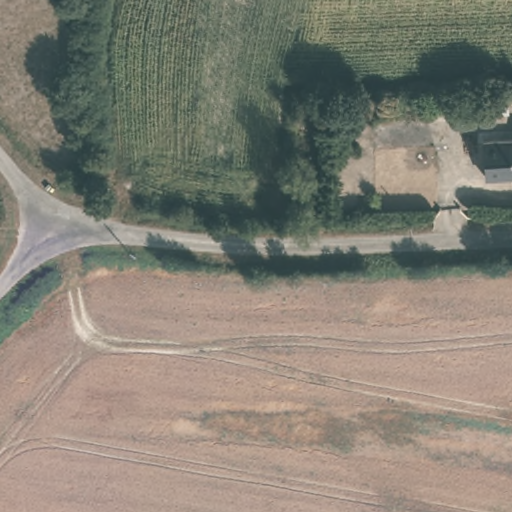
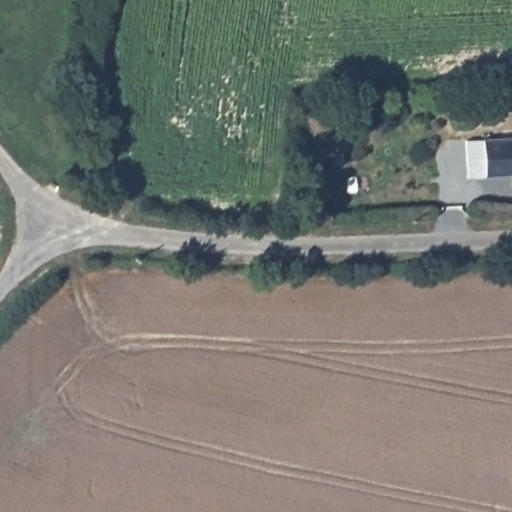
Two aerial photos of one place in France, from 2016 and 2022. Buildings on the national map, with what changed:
unchanged [(488,180),(486,145),(512,143),(512,178),(488,180)]

